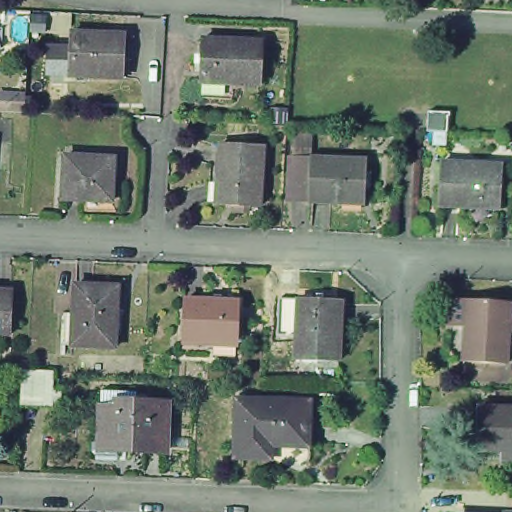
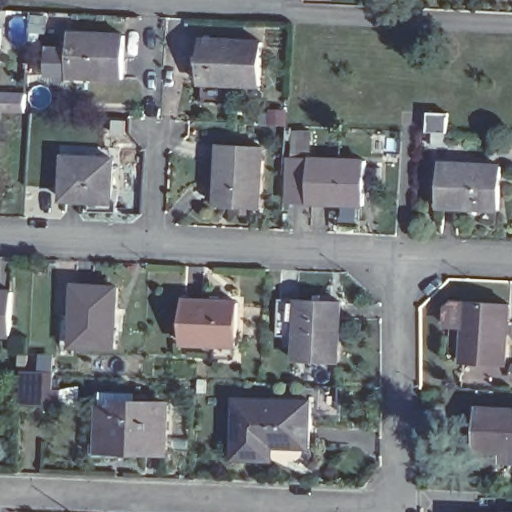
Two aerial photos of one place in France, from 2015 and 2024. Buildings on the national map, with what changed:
unchanged [(121,36),(118,78),(65,76),(67,34),(121,36)]
unchanged [(258,42),(256,86),(196,83),(198,41),(258,42)]
unchanged [(450,115),(449,133),(428,132),(428,113),(450,115)]
unchanged [(259,149),(256,209),(213,207),(217,147),(259,149)]
unchanged [(109,161),(108,202),(59,200),(61,159),(109,161)]
unchanged [(368,205),(314,202),(294,201),(295,160),(314,161),(370,163),(368,205)]
unchanged [(496,167),(494,210),(436,208),(438,166),(496,167)]
unchanged [(61,315),(73,315),(73,287),(115,288),(113,349),(72,347),(60,347),(61,315)]
unchanged [(213,355),(213,341),(181,338),(183,297),(211,298),(211,292),(219,292),(219,298),(237,299),(236,342),(233,342),(232,355),(213,355)]
unchanged [(9,341),(0,341),(0,299),(9,300),(9,341)]
unchanged [(507,306),(504,366),(461,363),(465,302),(507,306)]
unchanged [(338,304),(336,364),(296,362),(298,303),(338,304)]
unchanged [(30,373),(58,375),(56,409),(23,407),(23,373),(30,373)]
unchanged [(103,398),(139,400),(138,411),(169,412),(167,459),(126,457),(102,457),(103,451),(103,416),(103,398)]
unchanged [(309,405),(308,450),(261,448),(260,462),(232,461),(234,402),(309,405)]
unchanged [(512,407),(512,458),(509,458),(509,450),(477,448),(479,406),(512,407)]

